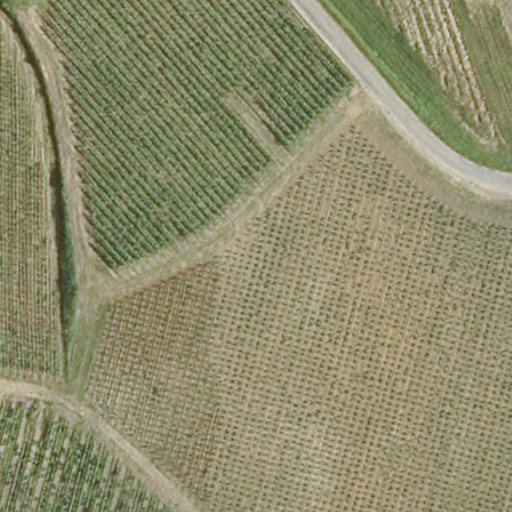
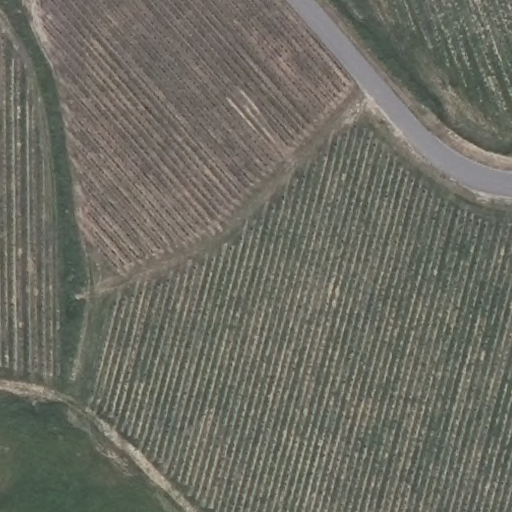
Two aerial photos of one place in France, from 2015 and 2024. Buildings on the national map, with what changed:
[]

